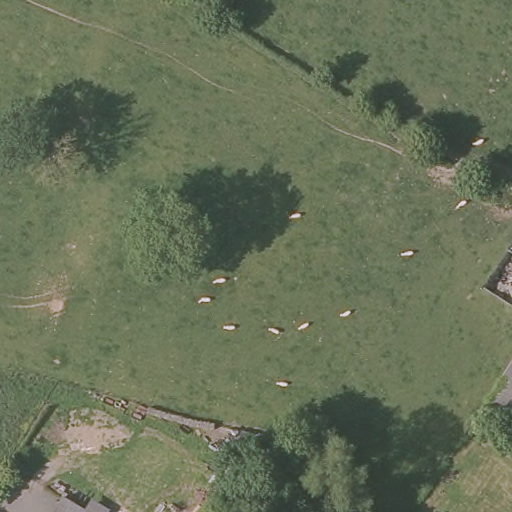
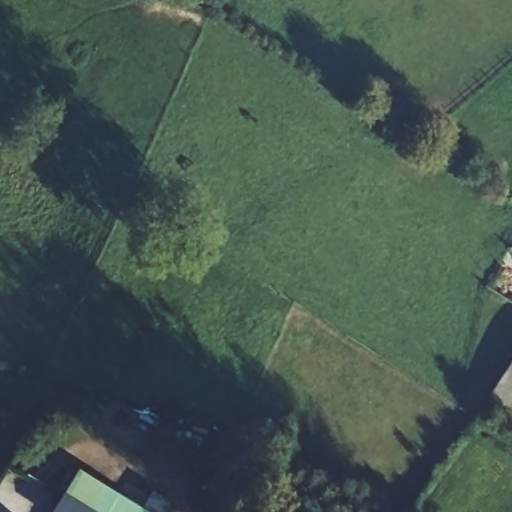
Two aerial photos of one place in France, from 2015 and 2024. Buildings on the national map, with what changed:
unchanged [(486,405),(512,367),(512,421),(486,405)]
new [(75,474),(139,512),(53,512),(75,474)]
demolished [(52,507),(60,512),(50,512),(52,507)]

